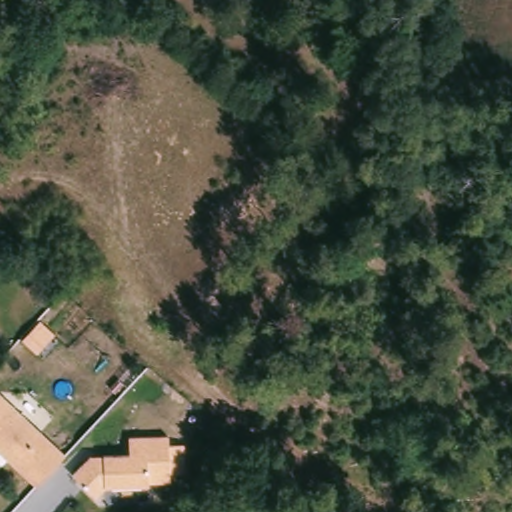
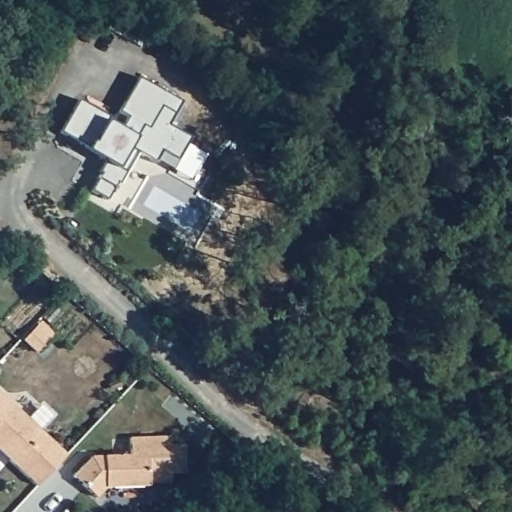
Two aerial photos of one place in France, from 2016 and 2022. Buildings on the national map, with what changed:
new [(115,182),(112,187),(106,200),(90,191),(97,179),(105,162),(86,150),(59,132),(77,101),(106,121),(119,130),(126,116),(118,111),(137,77),(178,103),(166,126),(188,137),(176,159),(159,151),(154,161),(135,152),(118,183),(115,182)]
unchanged [(39,485),(12,459),(15,456),(7,447),(0,447),(0,391),(1,390),(44,431),(68,455),(39,485)]
unchanged [(174,478),(152,479),(152,482),(107,483),(98,492),(76,471),(95,452),(107,452),(134,451),(134,433),(173,432),(174,442),(189,441),(189,469),(174,469),(174,478)]

